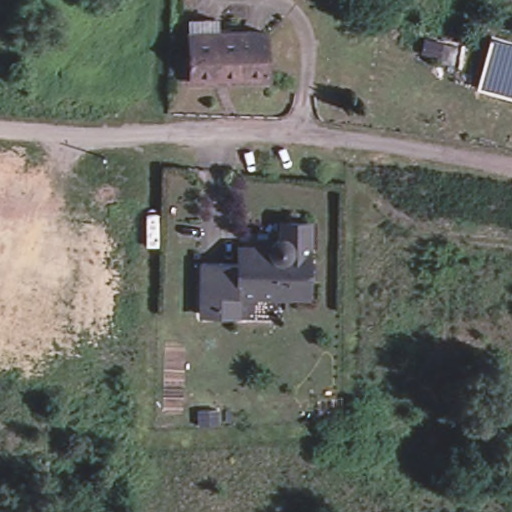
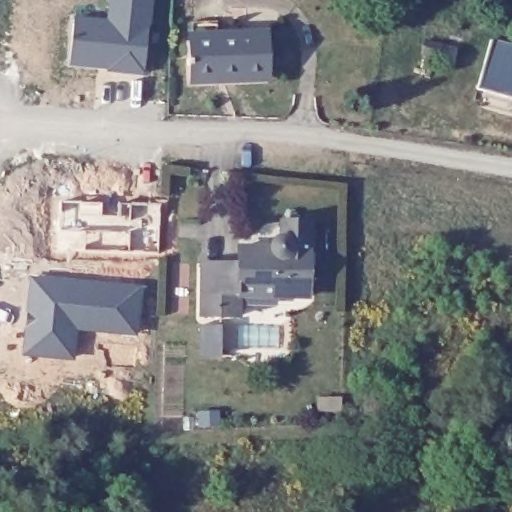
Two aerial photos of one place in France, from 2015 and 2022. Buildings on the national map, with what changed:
new [(145,73),(70,67),(75,17),(110,20),(112,0),(153,0),(145,73)]
unchanged [(189,35),(265,32),(266,76),(191,79),(189,35)]
new [(477,87),(493,38),(512,43),(512,97),(477,87)]
unchanged [(424,39),(442,43),(439,56),(421,52),(424,39)]
new [(103,202),(103,217),(119,217),(119,204),(161,204),(159,252),(85,250),(86,230),(61,230),(63,202),(103,202)]
unchanged [(286,296),(238,295),(238,316),(201,315),(202,262),(238,264),(238,247),(272,248),(273,246),(274,244),(275,241),(277,240),(279,239),(282,239),(283,222),(311,224),(310,247),(309,278),(309,297),(286,296)]
new [(143,288),(138,335),(77,330),(75,360),(25,355),(32,278),(143,288)]

